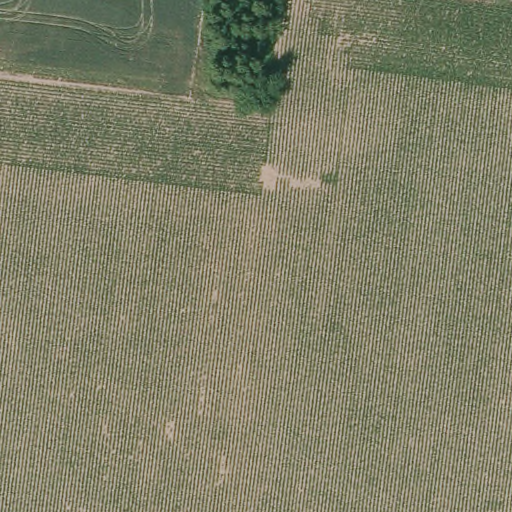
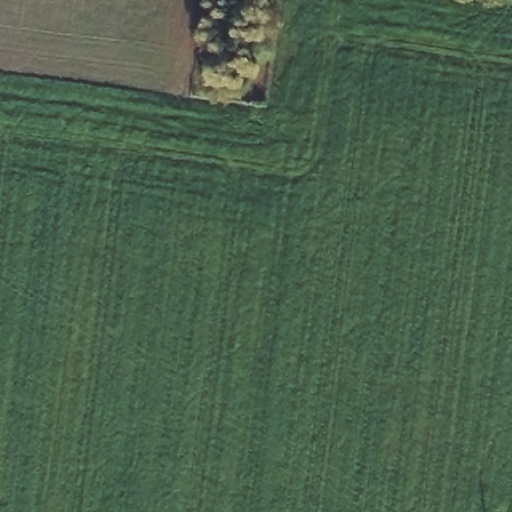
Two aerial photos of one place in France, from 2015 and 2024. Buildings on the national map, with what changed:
[]

